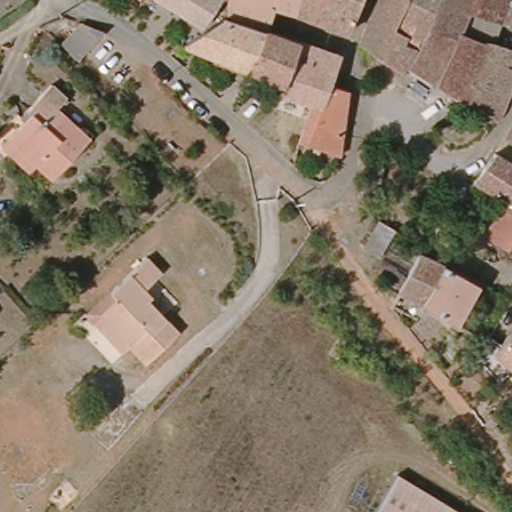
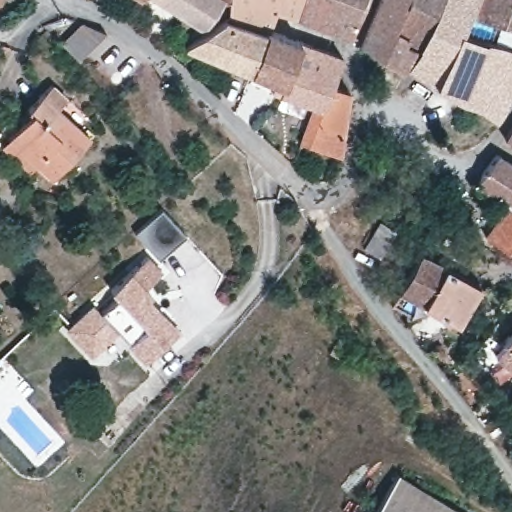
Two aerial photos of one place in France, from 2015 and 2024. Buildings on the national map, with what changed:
unchanged [(163,0),(219,0),(202,22),(163,0)]
unchanged [(276,9),(271,30),(268,29),(266,30),(229,19),(229,0),(300,0),(297,12),(276,9)]
unchanged [(297,12),(300,0),(363,0),(353,29),(297,12)]
unchanged [(398,34),(396,39),(407,44),(396,70),(353,45),(354,39),(370,0),(398,0),(387,27),(398,34)]
unchanged [(398,34),(387,27),(398,0),(431,0),(413,42),(398,34)]
unchanged [(402,65),(413,42),(431,0),(500,0),(493,20),(461,11),(453,32),(429,82),(402,65)]
unchanged [(500,0),(512,0),(512,25),(493,20),(500,0)]
unchanged [(226,17),(229,19),(266,30),(253,66),(184,41),(226,17)]
unchanged [(65,47),(85,24),(105,35),(106,36),(80,64),(65,47)]
unchanged [(275,75),(253,66),(266,30),(268,29),(271,30),(302,40),(343,54),(333,79),(322,105),(311,100),(281,89),(271,85),(275,75)]
unchanged [(512,66),(506,81),(502,89),(489,120),(467,105),(459,102),(429,82),(453,32),(512,51),(512,66)]
unchanged [(31,107),(28,104),(53,77),(67,91),(57,104),(89,134),(51,174),(36,160),(29,168),(0,140),(8,134),(31,107)]
unchanged [(346,151),(299,137),(311,100),(322,105),(332,79),(333,79),(350,86),(346,129),(346,151)]
unchanged [(512,115),(512,131),(506,125),(512,115)]
unchanged [(482,237),(503,205),(472,185),(491,157),(512,171),(512,240),(505,251),(482,237)]
unchanged [(366,182),(371,166),(386,171),(381,186),(366,182)]
new [(136,230),(161,209),(186,233),(161,256),(152,246),(136,230)]
unchanged [(379,222),(394,231),(378,260),(362,250),(379,221),(379,222)]
unchanged [(121,286),(115,279),(152,246),(166,262),(151,277),(157,285),(167,296),(163,300),(183,323),(150,352),(133,334),(125,340),(98,308),(104,302),(121,286)]
unchanged [(448,266),(479,282),(478,285),(481,286),(459,327),(401,292),(424,249),(436,255),(432,261),(447,270),(448,266)]
new [(118,331),(90,355),(64,330),(93,303),(98,308),(118,331)]
unchanged [(511,330),(512,328),(512,362),(497,350),(511,330)]
unchanged [(398,468),(470,512),(373,512),(398,468)]

